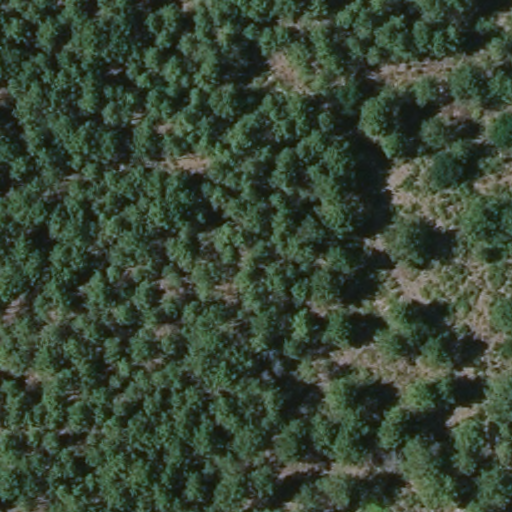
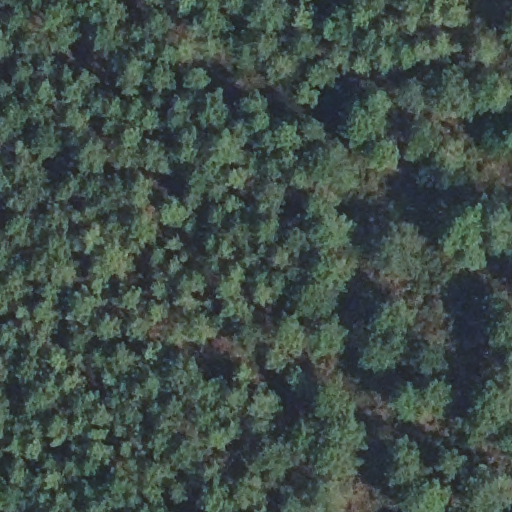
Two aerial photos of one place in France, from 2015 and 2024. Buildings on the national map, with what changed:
[]

